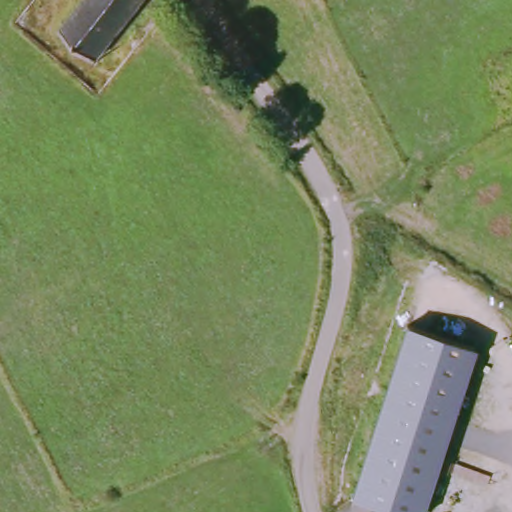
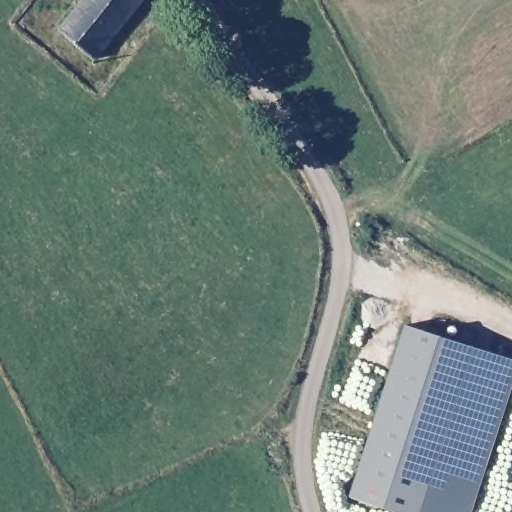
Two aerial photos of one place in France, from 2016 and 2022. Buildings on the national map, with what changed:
unchanged [(58,31),(83,0),(140,0),(93,58),(58,31)]
unchanged [(404,323),(474,347),(422,512),(400,512),(349,495),(404,323)]
new [(512,359),(512,392),(473,512),(422,512),(474,347),(512,359)]

